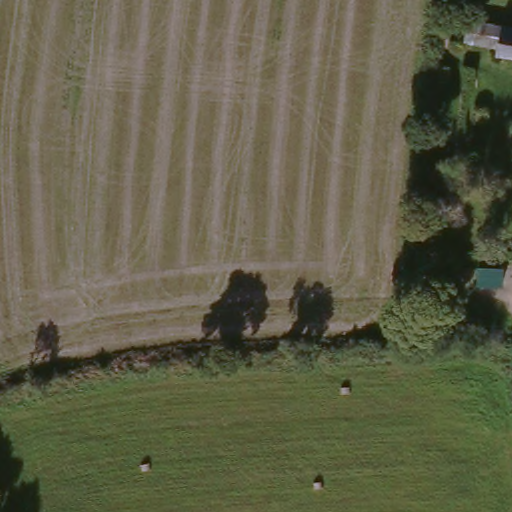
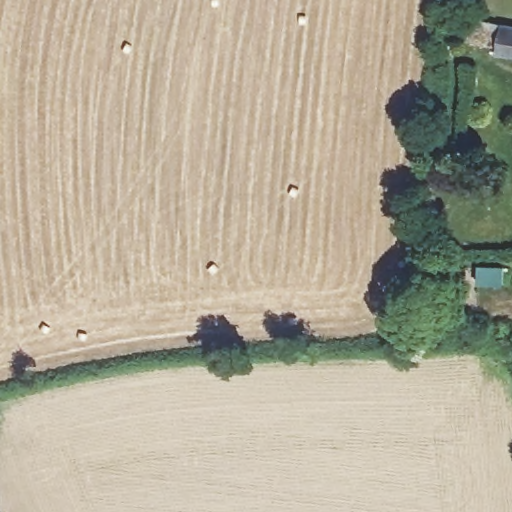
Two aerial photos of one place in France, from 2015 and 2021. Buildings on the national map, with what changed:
unchanged [(491,52),(452,44),(456,19),(512,31),(512,62),(490,58),(491,52)]

